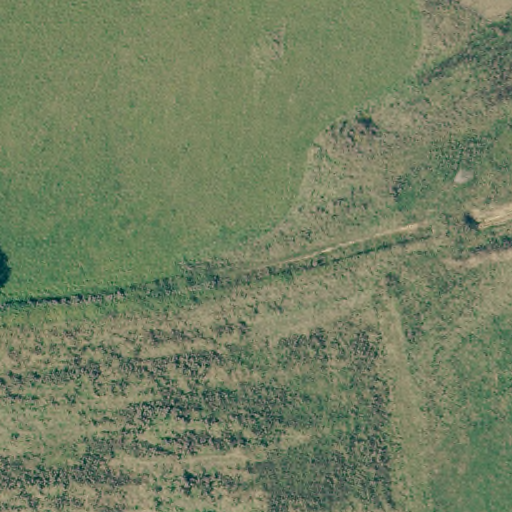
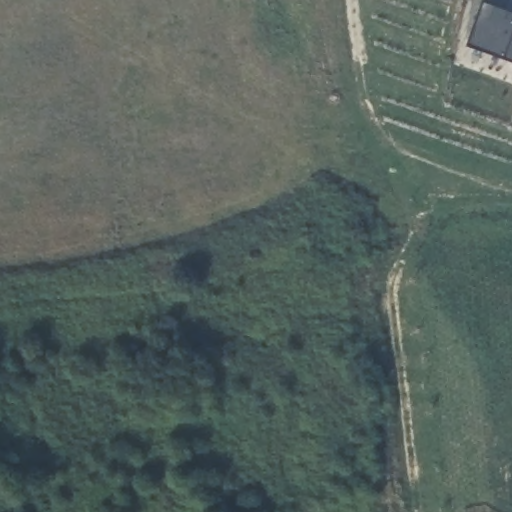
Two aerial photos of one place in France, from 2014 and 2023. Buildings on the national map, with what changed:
new [(465,46),(482,3),(512,13),(512,62),(465,46)]

